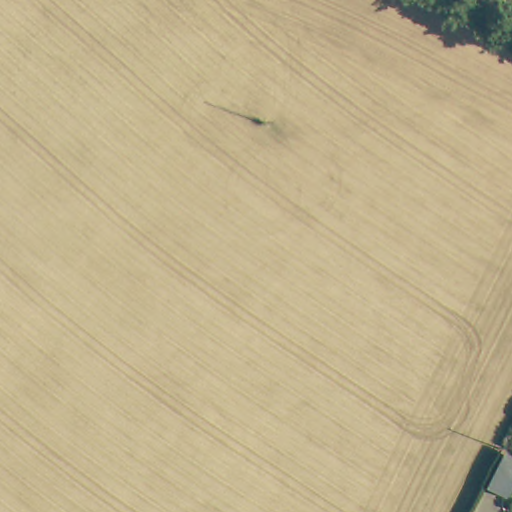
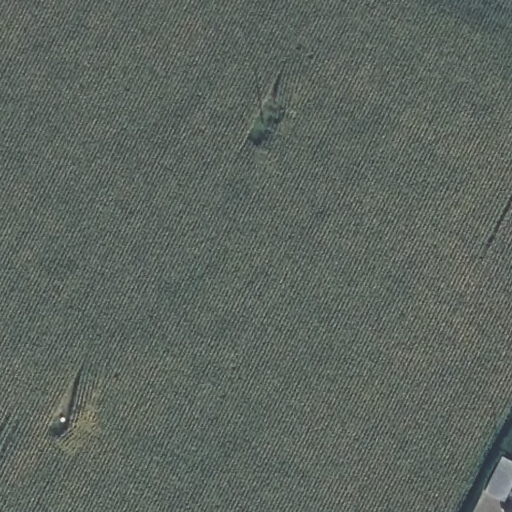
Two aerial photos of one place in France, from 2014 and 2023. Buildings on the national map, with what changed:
[]

